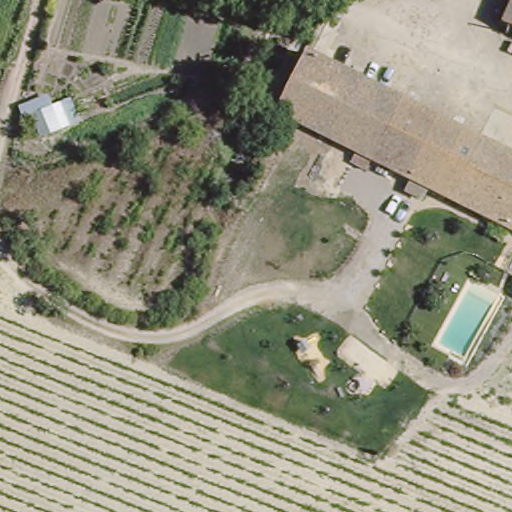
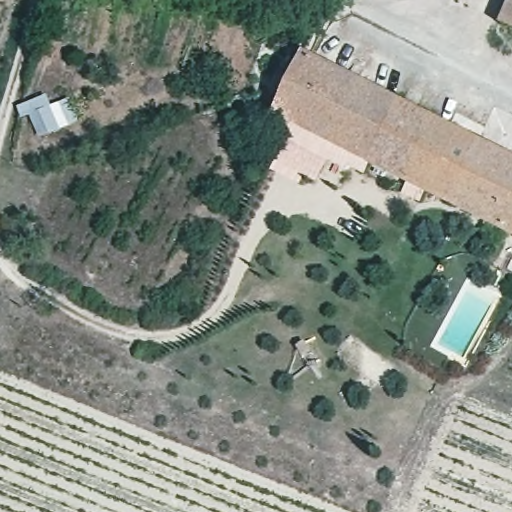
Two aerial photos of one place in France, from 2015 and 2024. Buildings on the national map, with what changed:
unchanged [(512,7),(512,32),(503,27),(512,7)]
unchanged [(432,192),(376,165),(370,179),(354,171),(360,157),(299,129),(292,142),(270,133),(302,65),(307,57),(462,131),(432,192)]
new [(288,140),(292,142),(299,129),(360,157),(354,171),(331,160),(319,184),(307,178),(302,185),(273,170),(288,140)]
unchanged [(512,231),(432,192),(462,131),(512,155),(512,231)]

